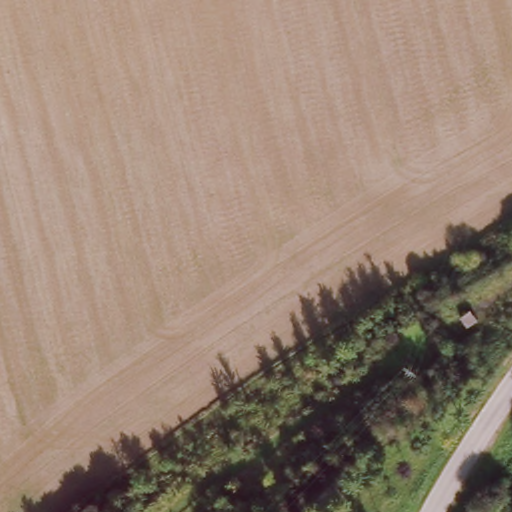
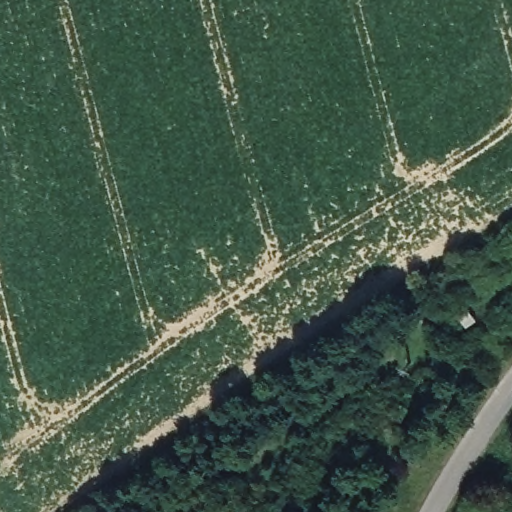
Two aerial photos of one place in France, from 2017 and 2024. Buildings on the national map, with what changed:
unchanged [(472,311),(475,317),(473,324),(468,325),(462,325),(458,321),(457,315),(460,312),(468,309),(472,311)]

